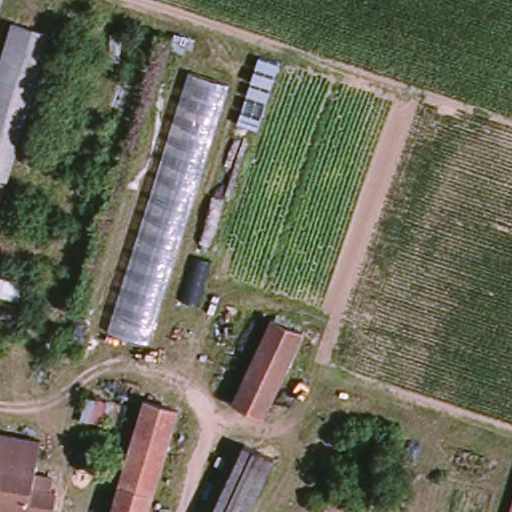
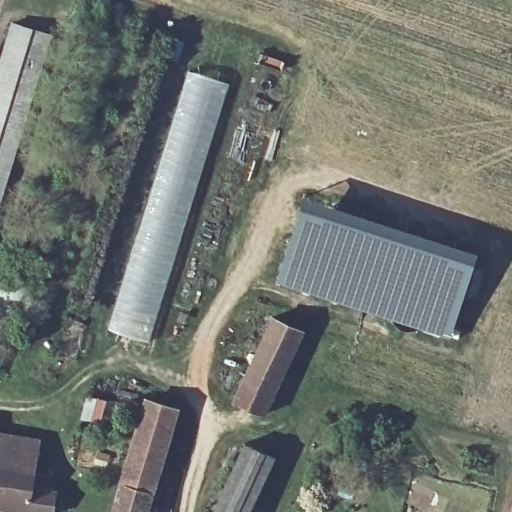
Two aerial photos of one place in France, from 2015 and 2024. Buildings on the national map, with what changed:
unchanged [(0,196),(0,72),(14,29),(51,43),(0,196)]
unchanged [(153,340),(116,328),(193,81),(229,93),(153,340)]
new [(299,200),(470,256),(444,332),(274,277),(299,200)]
unchanged [(269,315),(303,331),(265,417),(232,400),(269,315)]
unchanged [(146,512),(109,512),(145,398),(178,410),(146,512)]
unchanged [(37,435),(33,467),(0,462),(0,428),(37,435)]
unchanged [(236,445),(268,459),(245,512),(207,512),(236,445)]
unchanged [(33,467),(29,493),(51,498),(49,512),(0,512),(0,462),(33,467)]

